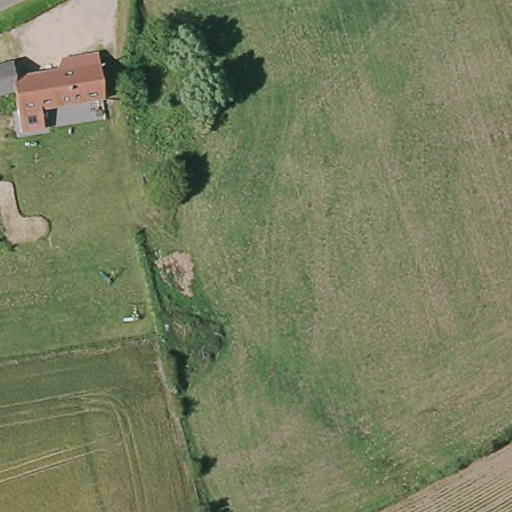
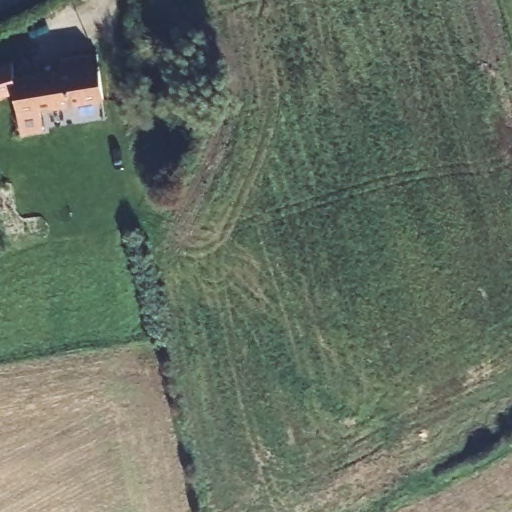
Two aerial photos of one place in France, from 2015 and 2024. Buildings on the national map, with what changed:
unchanged [(11,65),(15,82),(54,73),(59,64),(55,63),(54,61),(54,57),(55,54),(59,52),(64,54),(68,59),(95,53),(104,96),(80,99),(85,128),(63,132),(57,105),(9,112),(5,92),(0,94),(0,68),(11,65)]

